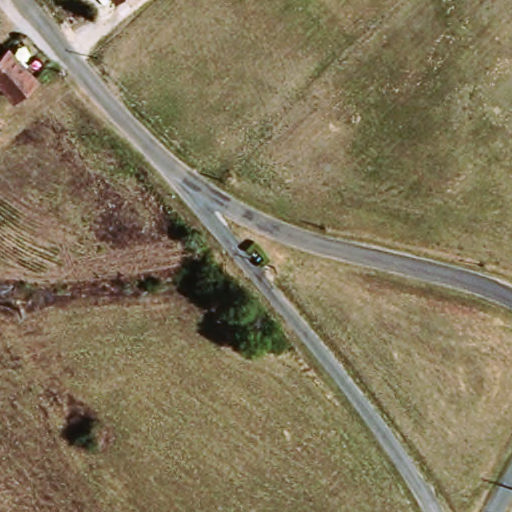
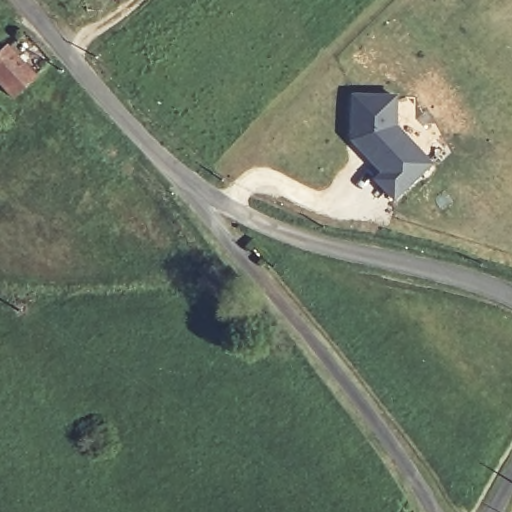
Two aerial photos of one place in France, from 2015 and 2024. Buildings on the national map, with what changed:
unchanged [(122,0),(103,13),(93,0),(122,0)]
unchanged [(14,95),(0,80),(0,55),(8,48),(34,78),(14,95)]
new [(398,123),(435,164),(396,201),(374,180),(381,173),(350,138),(352,94),(398,94),(398,123)]

